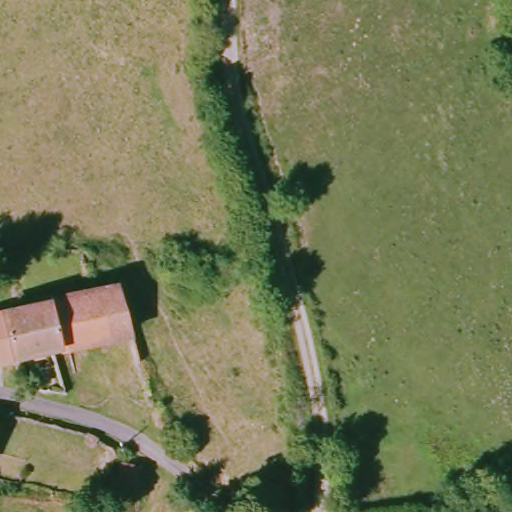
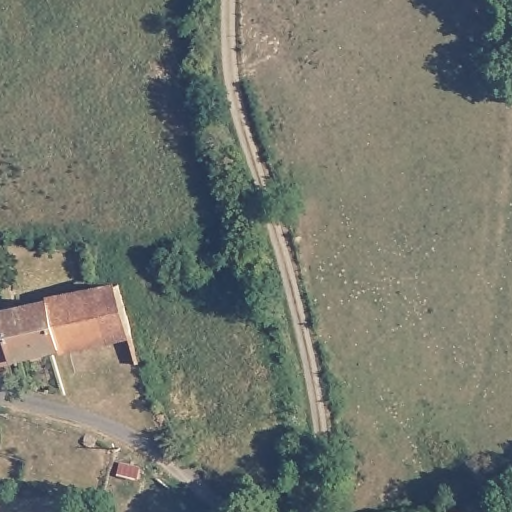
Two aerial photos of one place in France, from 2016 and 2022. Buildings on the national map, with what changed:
unchanged [(0,314),(116,287),(129,336),(10,363),(0,319),(0,314)]
unchanged [(0,365),(0,319),(10,363),(0,365)]

